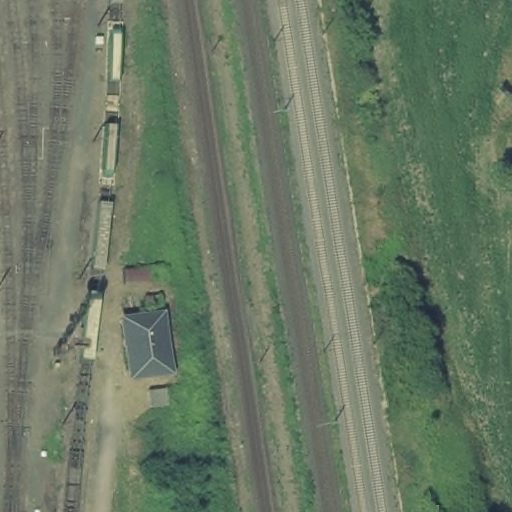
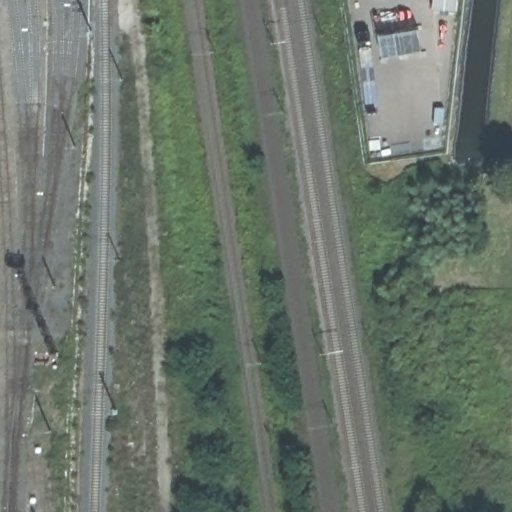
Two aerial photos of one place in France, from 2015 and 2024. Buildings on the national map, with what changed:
demolished [(171,377),(128,382),(121,317),(168,311),(171,377)]

